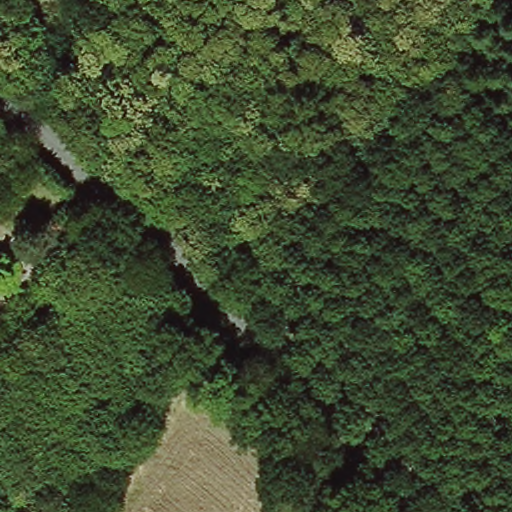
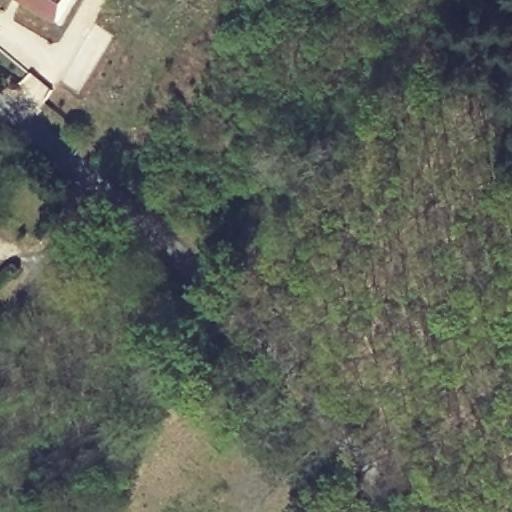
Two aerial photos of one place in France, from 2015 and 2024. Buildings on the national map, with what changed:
new [(21,3),(17,0),(72,0),(57,25),(21,3)]

